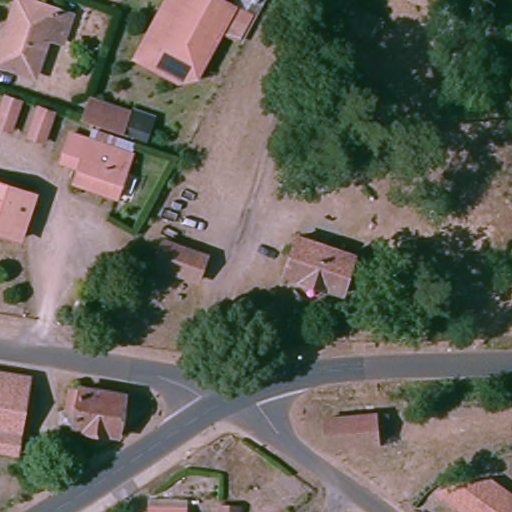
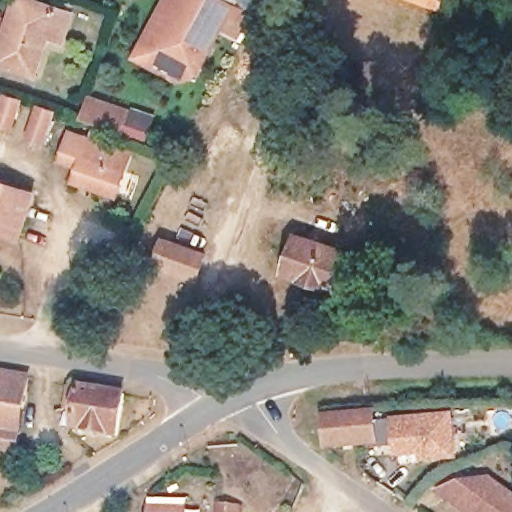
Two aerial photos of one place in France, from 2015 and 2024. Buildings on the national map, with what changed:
unchanged [(43,34),(30,73),(0,63),(0,39),(5,23),(13,0),(26,0),(66,14),(58,39),(43,34)]
unchanged [(166,54),(209,76),(190,80),(148,57),(176,0),(195,0),(166,54)]
unchanged [(245,15),(253,0),(269,0),(275,3),(267,16),(265,19),(253,44),(246,40),(231,32),(209,76),(166,54),(195,0),(218,0),(241,13),(245,15)]
unchanged [(440,13),(405,0),(445,0),(440,13)]
unchanged [(353,98),(347,116),(315,105),(321,87),(353,98)]
unchanged [(33,98),(22,128),(8,123),(19,93),(33,98)]
unchanged [(91,108),(94,100),(134,114),(131,122),(126,139),(85,125),(91,108)]
unchanged [(62,108),(51,138),(36,133),(47,103),(62,108)]
unchanged [(135,153),(120,197),(75,183),(82,164),(68,158),(74,134),(135,153)]
unchanged [(0,234),(0,184),(34,196),(18,241),(0,234)]
unchanged [(281,276),(294,237),(352,256),(340,295),(281,276)]
unchanged [(206,260),(198,283),(155,269),(164,245),(206,260)]
unchanged [(17,454),(0,451),(0,375),(27,381),(17,454)]
unchanged [(71,389),(122,396),(115,436),(65,429),(67,416),(57,414),(60,389),(71,391),(71,389)]
new [(395,446),(393,418),(454,413),(457,461),(418,465),(418,457),(393,459),(392,446),(395,446)]
unchanged [(326,419),(376,417),(393,416),(395,446),(377,447),(327,450),(326,419)]
unchanged [(492,478),(512,491),(512,512),(461,512),(436,494),(492,478)]
unchanged [(183,512),(146,512),(146,510),(183,512)]

